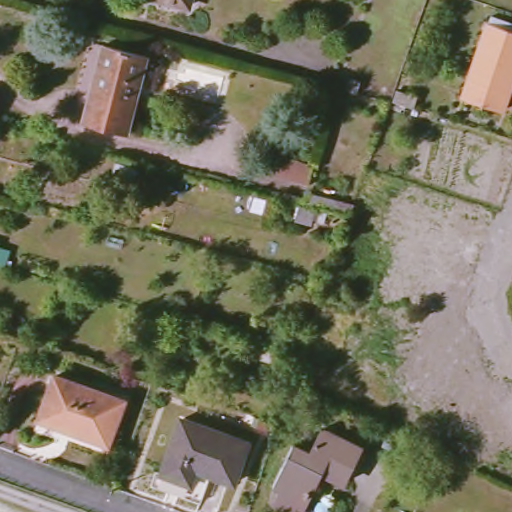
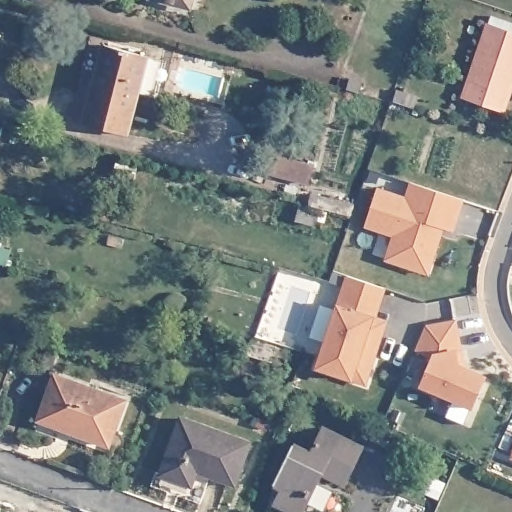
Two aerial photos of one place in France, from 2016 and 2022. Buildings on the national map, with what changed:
unchanged [(164,0),(198,0),(196,8),(164,0)]
unchanged [(496,21),(512,26),(512,99),(509,106),(470,93),(496,21)]
unchanged [(113,44),(154,54),(133,140),(90,130),(113,44)]
new [(456,233),(446,228),(429,275),(384,261),(392,238),(363,228),(378,188),(404,197),(409,182),(465,202),(456,233)]
new [(386,289),(378,317),(389,321),(367,386),(351,382),(314,370),(335,304),(345,276),(386,289)]
new [(464,357),(459,358),(460,365),(487,376),(474,408),(418,388),(431,359),(414,351),(425,327),(457,320),(464,357)]
unchanged [(123,400),(109,442),(38,420),(52,378),(123,400)]
unchanged [(251,442),(239,477),(200,464),(193,484),(165,474),(184,419),(251,442)]
unchanged [(283,511),(292,492),(282,487),(299,450),(316,459),(328,434),(364,453),(348,491),(324,479),(313,501),(307,512),(285,512),(283,511)]
new [(509,460),(512,453),(512,461),(509,460)]

